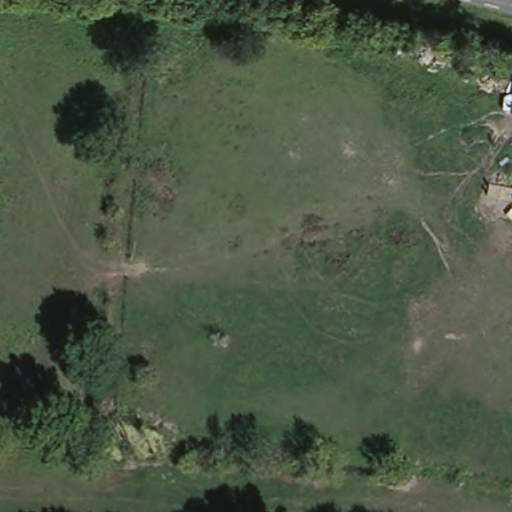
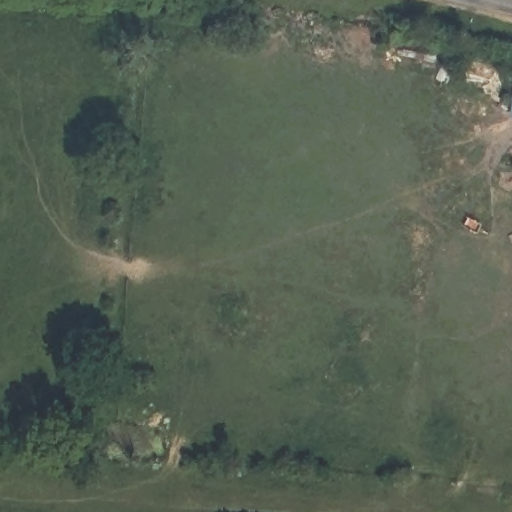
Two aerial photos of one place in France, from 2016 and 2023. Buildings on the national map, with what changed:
unchanged [(512,103),(512,117),(510,116),(512,103)]

